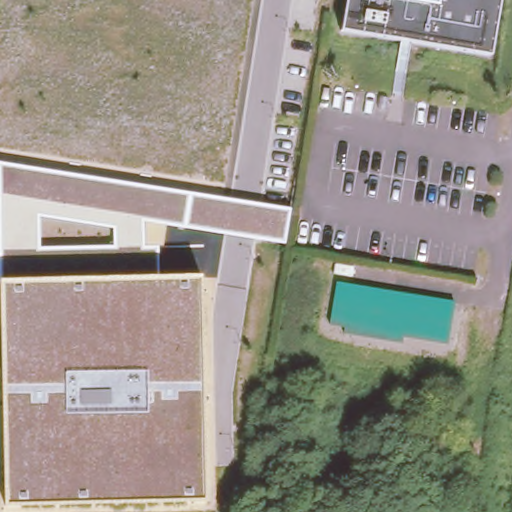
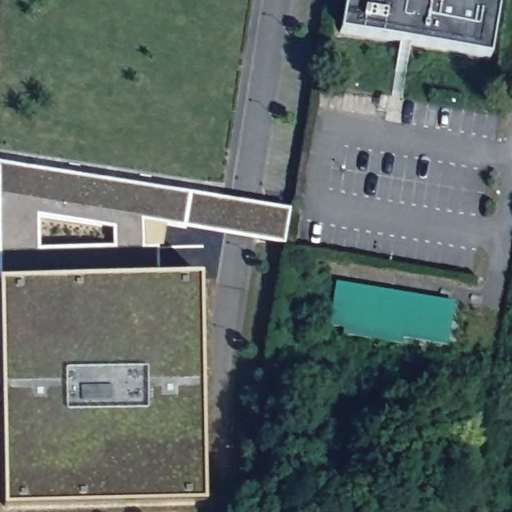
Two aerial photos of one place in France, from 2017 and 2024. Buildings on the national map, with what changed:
unchanged [(499,0),(492,50),(341,26),(345,0),(499,0)]
unchanged [(286,243),(167,224),(162,275),(0,280),(0,163),(291,209),(286,243)]
unchanged [(205,498),(4,504),(0,280),(162,275),(200,273),(205,498)]
unchanged [(333,287),(454,305),(446,345),(399,338),(398,344),(341,336),(343,328),(327,326),(333,287)]

